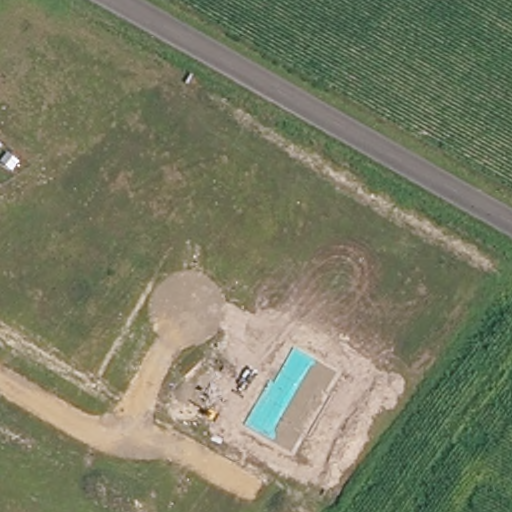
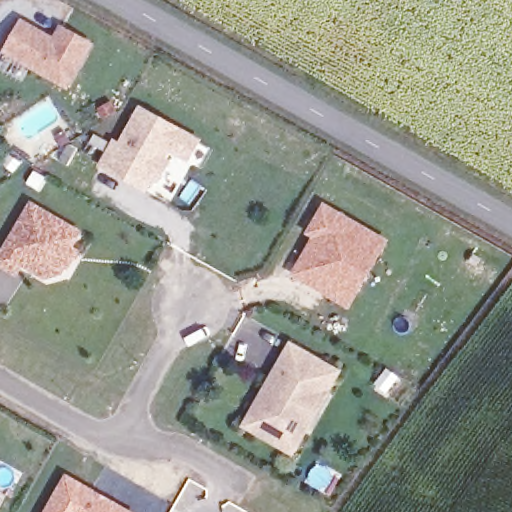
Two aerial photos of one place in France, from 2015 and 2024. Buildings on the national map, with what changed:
new [(53,35),(60,23),(95,42),(68,90),(1,52),(20,16),(53,35)]
new [(97,168),(112,140),(119,142),(138,106),(200,139),(189,163),(174,157),(158,186),(154,183),(147,196),(97,168)]
new [(82,230),(74,247),(80,251),(65,275),(45,281),(21,268),(15,278),(0,269),(0,252),(29,199),(82,230)]
new [(311,238),(305,235),(323,204),(387,241),(349,311),(290,277),(311,238)]
new [(342,370),(292,456),(240,426),(289,339),(342,370)]
new [(134,512),(42,512),(64,473),(134,512)]

